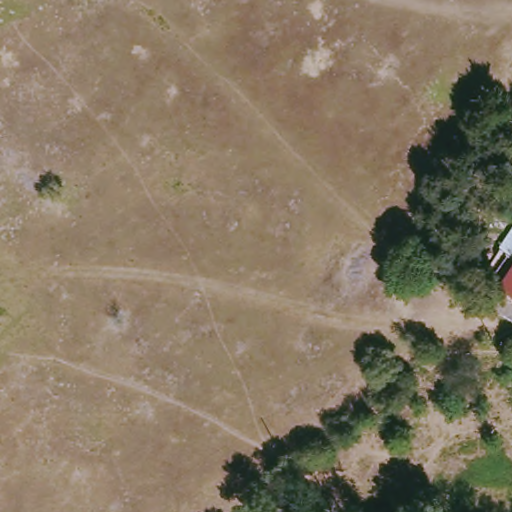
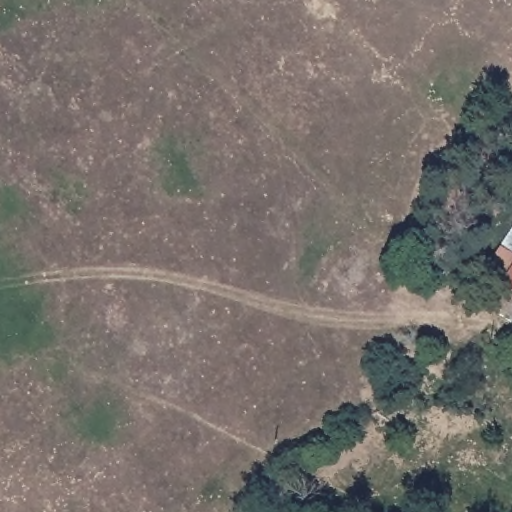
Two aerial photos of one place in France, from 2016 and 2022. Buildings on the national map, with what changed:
unchanged [(486,278),(504,252),(512,257),(512,295),(486,278)]

